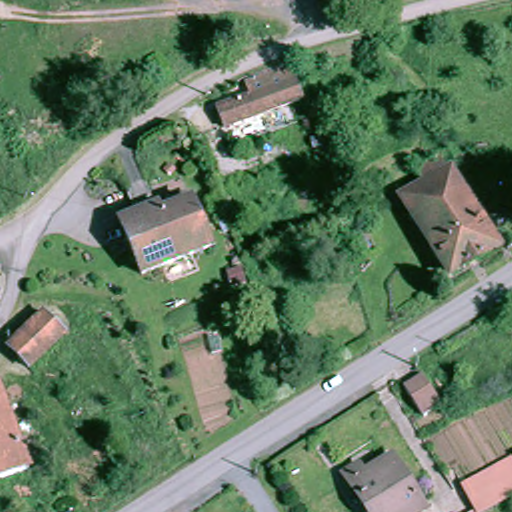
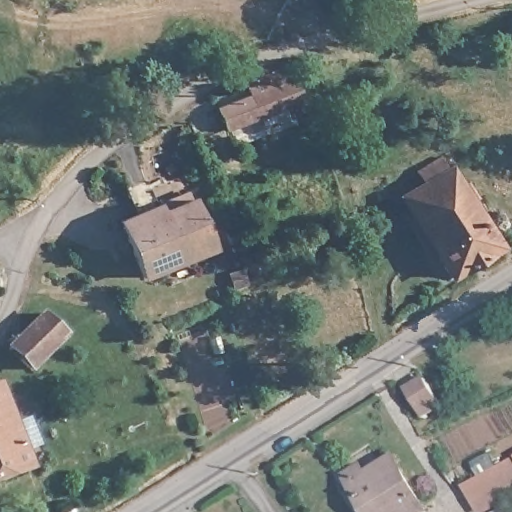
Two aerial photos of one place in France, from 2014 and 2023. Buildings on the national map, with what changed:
unchanged [(227,125),(220,104),(253,91),(249,79),(275,69),(293,65),(305,96),(227,125)]
unchanged [(466,202),(477,222),(480,220),(495,244),(497,242),(500,248),(495,251),(493,248),(447,275),(450,278),(445,281),(442,275),(443,274),(430,250),(433,247),(413,213),(410,215),(400,198),(422,185),(415,172),(439,158),(446,171),(450,169),(460,186),(467,182),(475,197),(466,202)]
unchanged [(162,204),(165,210),(190,200),(209,248),(139,277),(117,221),(162,204)]
unchanged [(67,335),(57,345),(32,370),(10,348),(47,313),(67,335)]
unchanged [(430,383),(440,403),(417,413),(405,385),(425,375),(430,383)]
unchanged [(25,436),(28,445),(20,449),(28,469),(0,480),(0,397),(16,439),(25,436)]
unchanged [(510,454),(512,453),(512,458),(510,454)]
unchanged [(506,494),(507,498),(480,512),(473,512),(459,482),(510,454),(512,458),(512,491),(506,494)]
unchanged [(342,481),(357,473),(362,482),(390,466),(417,512),(369,512),(365,505),(357,509),(347,491),(342,481)]

